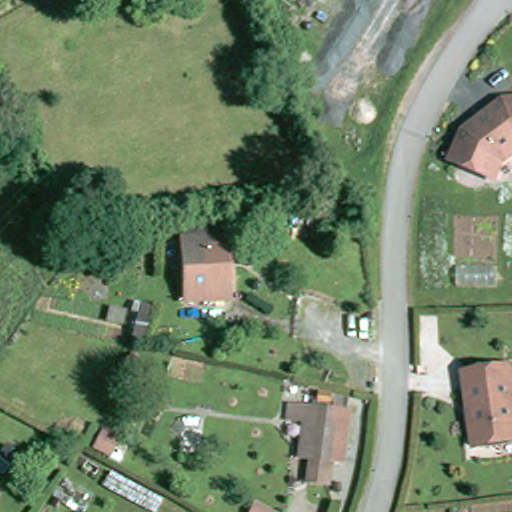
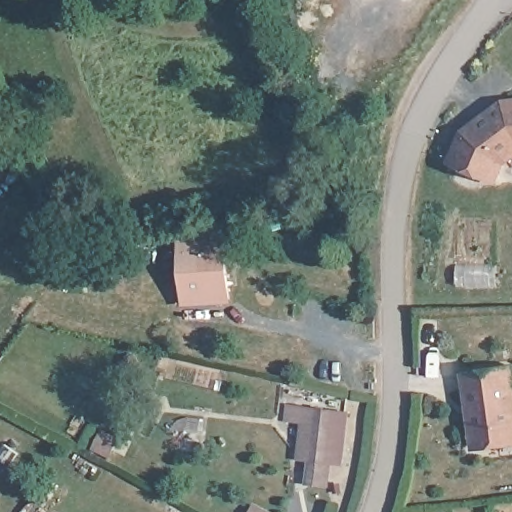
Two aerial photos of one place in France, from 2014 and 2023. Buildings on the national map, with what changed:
unchanged [(493,182),(449,164),(460,135),(498,108),(512,106),(512,158),(498,169),(493,182)]
unchanged [(232,303),(188,305),(185,246),(212,244),(212,242),(228,241),(232,303)]
unchanged [(475,373),(512,368),(512,440),(486,443),(475,444),(473,428),(470,407),(466,374),(475,373)]
unchanged [(347,414),(342,466),(330,464),(327,489),(308,486),(311,462),(305,460),(301,460),(304,426),(287,423),(290,407),(308,409),(347,414)]
unchanged [(249,512),(255,502),(276,512),(249,512)]

